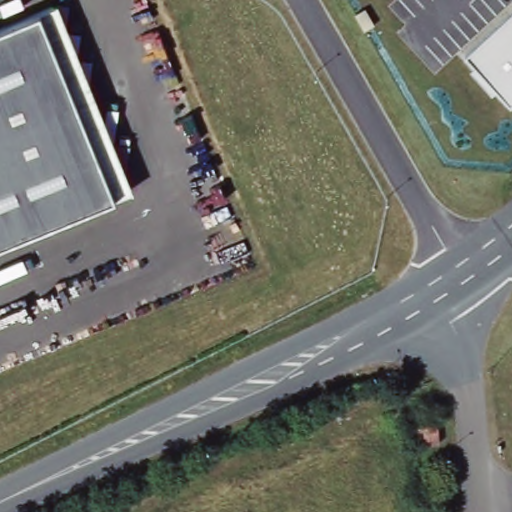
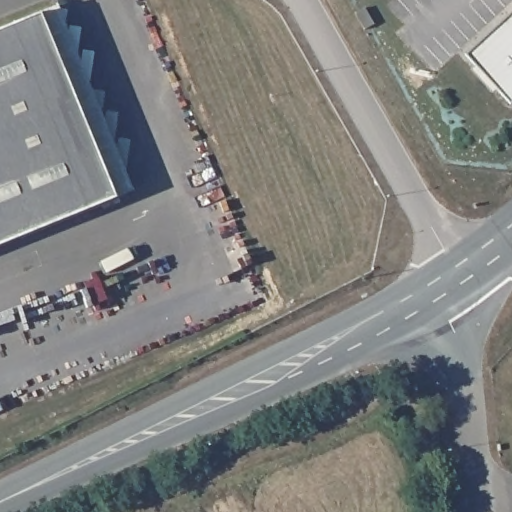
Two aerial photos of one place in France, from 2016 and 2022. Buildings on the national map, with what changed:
unchanged [(58,0),(132,184),(116,191),(41,6),(55,0),(58,0)]
unchanged [(14,16),(41,6),(116,191),(89,202),(14,16)]
unchanged [(512,15),(512,102),(469,55),(512,15)]
unchanged [(14,16),(89,202),(0,238),(0,22),(14,16)]
unchanged [(437,424),(440,442),(440,443),(421,445),(418,426),(437,424)]

